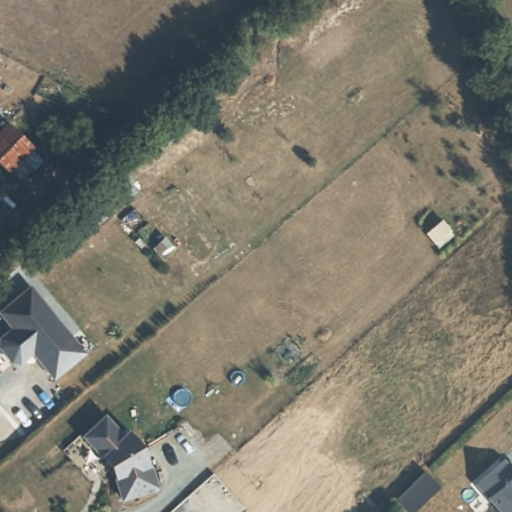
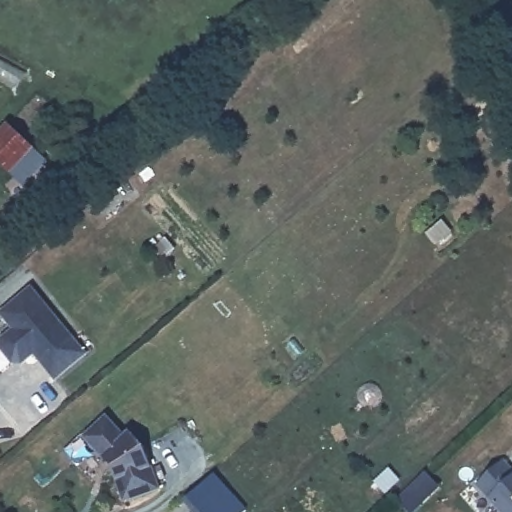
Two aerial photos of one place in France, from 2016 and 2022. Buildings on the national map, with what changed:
unchanged [(36,147),(13,172),(0,160),(0,136),(13,124),(36,147)]
unchanged [(36,285),(90,351),(60,378),(38,352),(25,362),(17,361),(3,344),(6,336),(18,325),(5,310),(36,285)]
unchanged [(129,434),(140,434),(147,442),(161,484),(126,496),(115,463),(86,433),(108,413),(129,434)]
unchanged [(479,481),(507,459),(512,466),(512,512),(503,512),(488,493),(479,481)]
new [(247,509),(243,512),(195,512),(185,499),(215,473),(247,509)]
unchanged [(416,512),(411,512),(399,499),(424,473),(441,488),(416,512)]

